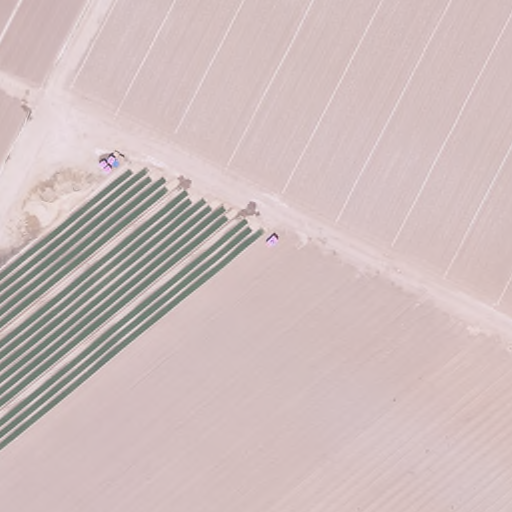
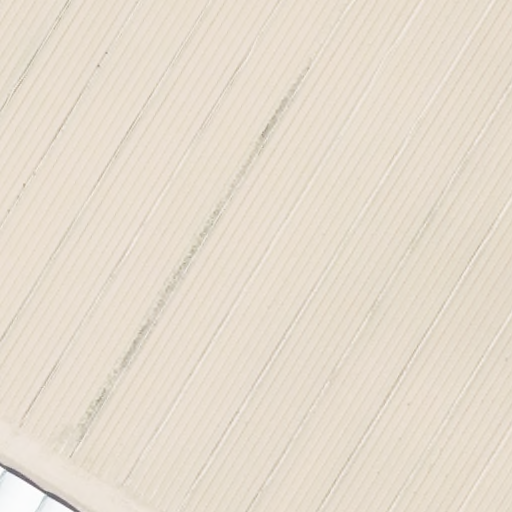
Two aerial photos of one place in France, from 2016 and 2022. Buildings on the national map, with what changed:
new [(72,512),(0,512),(0,467),(72,512)]

